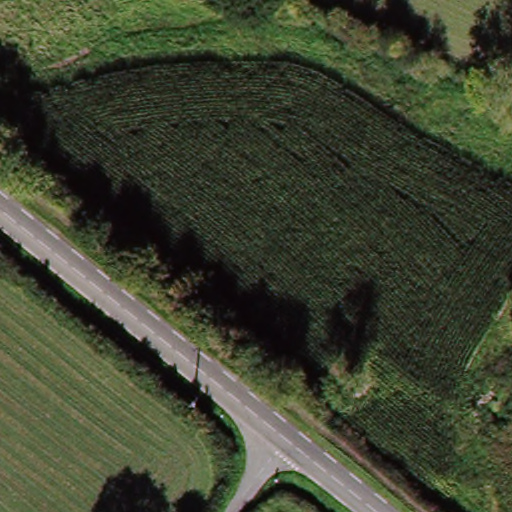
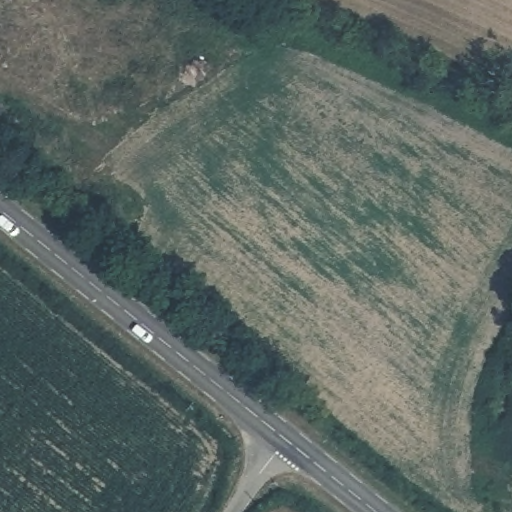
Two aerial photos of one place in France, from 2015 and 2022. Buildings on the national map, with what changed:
[]

